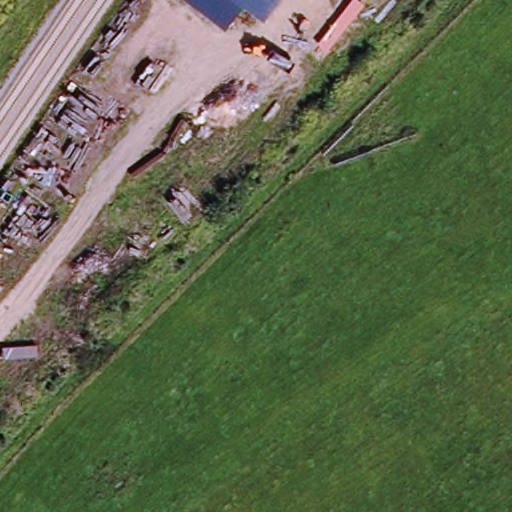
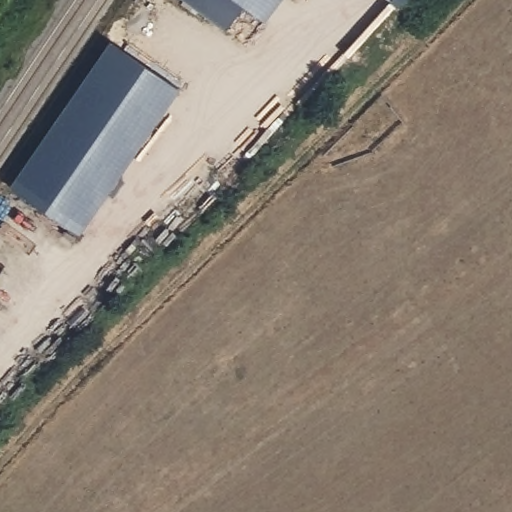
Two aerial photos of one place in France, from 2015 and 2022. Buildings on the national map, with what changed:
unchanged [(265,20),(244,6),(224,29),(185,0),(281,0),(265,20)]
new [(180,85),(80,229),(11,180),(105,42),(180,85)]

